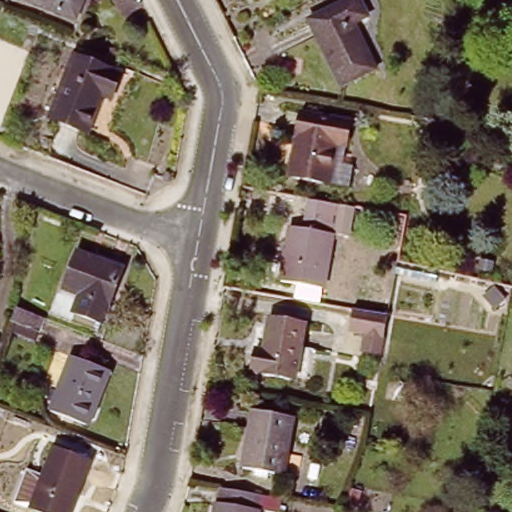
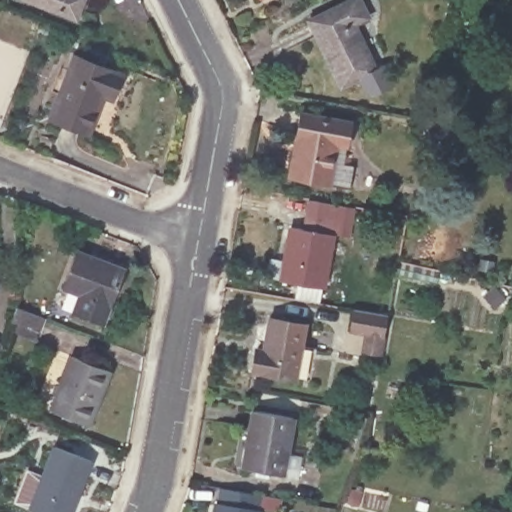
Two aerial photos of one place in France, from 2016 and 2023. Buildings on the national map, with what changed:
unchanged [(38,0),(84,0),(77,15),(38,0)]
unchanged [(357,22),(379,66),(342,83),(311,18),(347,0),(363,0),(372,15),(357,22)]
unchanged [(73,49),(120,67),(110,92),(102,89),(85,127),(49,113),(73,49)]
unchanged [(345,122),(340,162),(349,164),(345,185),(287,176),(297,114),(345,122)]
unchanged [(297,293),(299,284),(283,282),(292,230),(302,232),(310,198),(355,206),(349,235),(335,232),(325,288),(322,288),(321,297),(320,302),(296,297),(297,293)]
unchanged [(124,265),(103,322),(74,312),(82,289),(67,283),(81,249),(124,265)]
unchanged [(3,267),(0,276),(0,266),(3,267)]
unchanged [(15,303),(41,313),(35,328),(8,318),(15,303)]
unchanged [(389,313),(380,355),(359,351),(362,332),(349,330),(354,306),(389,313)]
unchanged [(304,374),(259,367),(262,346),(271,346),(276,315),(312,320),(304,374)]
unchanged [(50,405),(70,351),(112,369),(94,422),(50,405)]
unchanged [(285,471),(247,464),(257,407),(295,412),(285,471)]
unchanged [(32,500),(53,441),(89,455),(67,512),(62,512),(32,500)]
unchanged [(280,512),(216,512),(218,497),(280,508),(280,512)]

